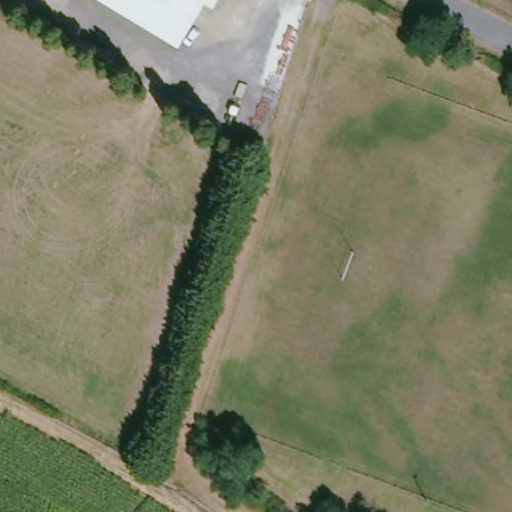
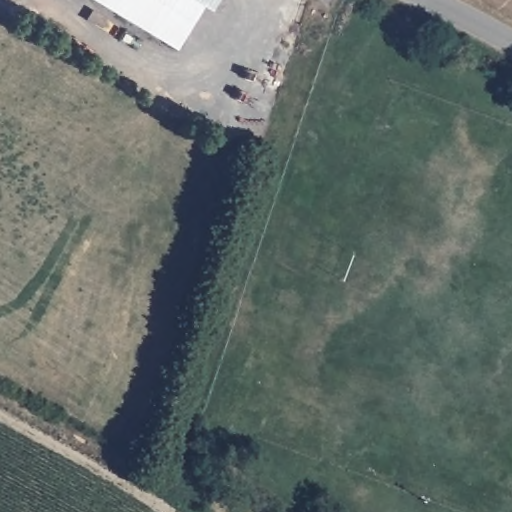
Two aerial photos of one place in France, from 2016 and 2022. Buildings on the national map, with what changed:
unchanged [(103,0),(195,0),(201,4),(177,44),(103,0)]
unchanged [(201,4),(195,0),(216,0),(211,9),(201,4)]

